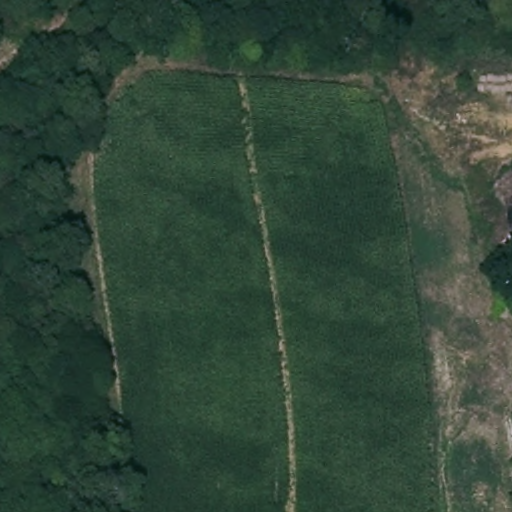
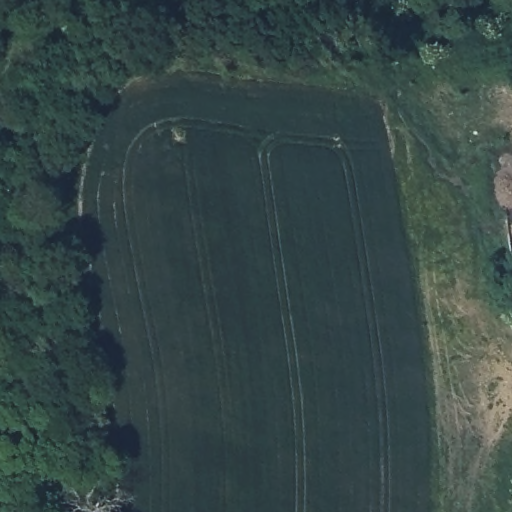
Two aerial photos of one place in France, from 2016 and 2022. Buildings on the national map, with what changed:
unchanged [(510,369),(507,322),(512,322),(512,369),(510,369)]

